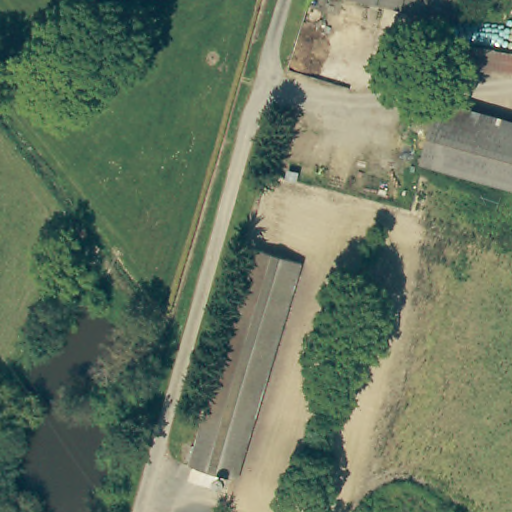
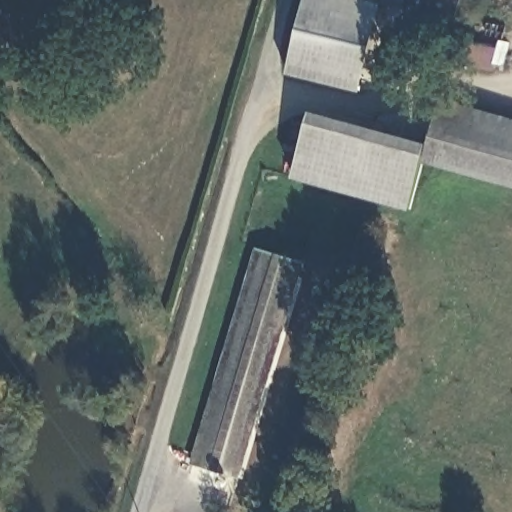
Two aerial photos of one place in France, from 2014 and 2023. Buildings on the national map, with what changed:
new [(360,91),(287,74),(306,0),(353,0),(380,6),(360,91)]
unchanged [(380,6),(353,0),(382,0),(380,6)]
unchanged [(382,0),(462,0),(456,25),(380,6),(382,0)]
unchanged [(492,70),(453,61),(458,41),(497,51),(512,54),(512,75),(492,70)]
unchanged [(440,110),(512,129),(512,185),(427,159),(440,110)]
new [(430,146),(427,159),(409,211),(291,179),(311,112),(430,146)]
unchanged [(263,254),(304,267),(235,483),(194,469),(263,254)]

